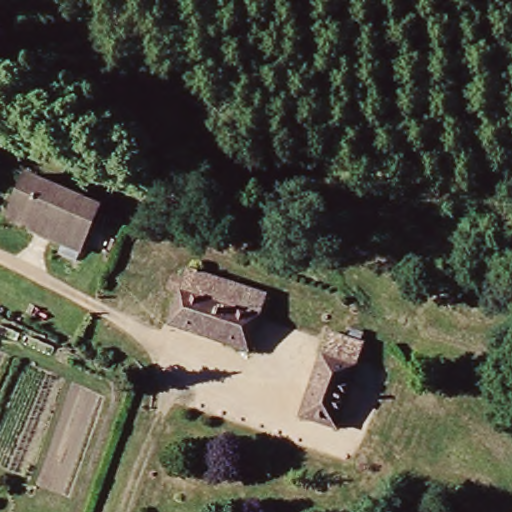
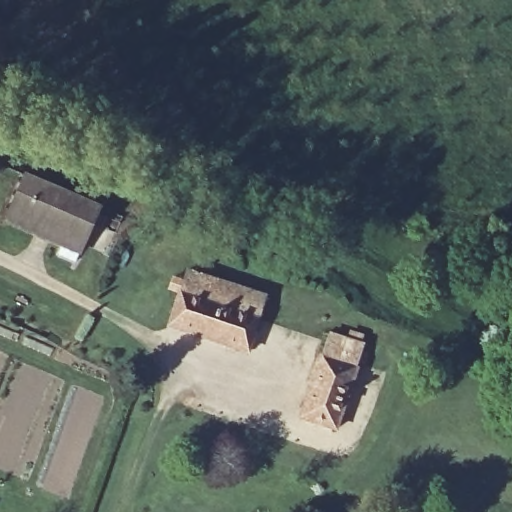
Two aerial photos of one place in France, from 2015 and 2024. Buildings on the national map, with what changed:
unchanged [(6,217),(9,210),(25,175),(97,207),(78,250),(6,217)]
unchanged [(268,300),(251,354),(175,330),(191,275),(268,300)]
unchanged [(369,346),(343,428),(305,416),(331,334),(369,346)]

